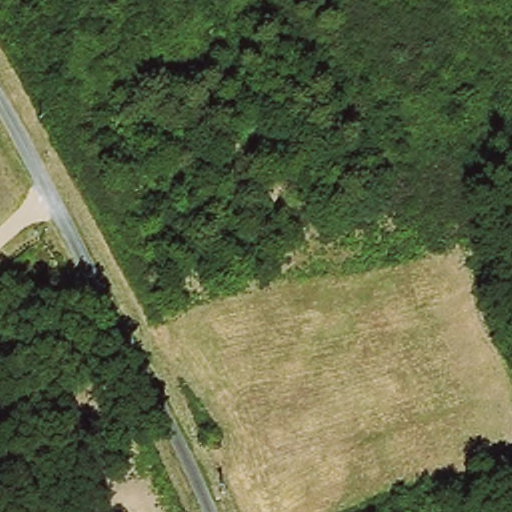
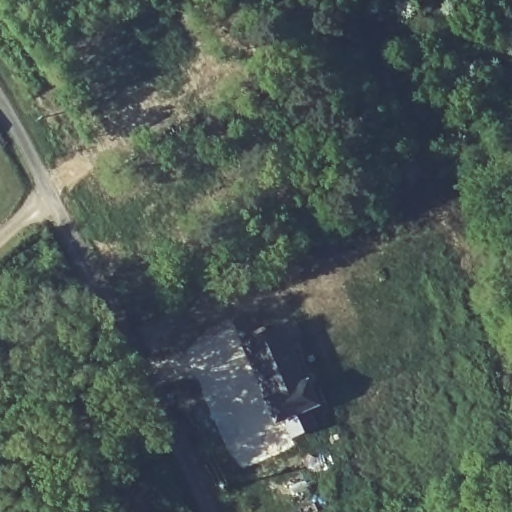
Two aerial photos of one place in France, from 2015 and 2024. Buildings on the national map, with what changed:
new [(285,327),(308,383),(310,382),(319,404),(310,408),(317,426),(294,436),(287,418),(277,421),(268,399),(270,398),(248,342),(285,327)]

